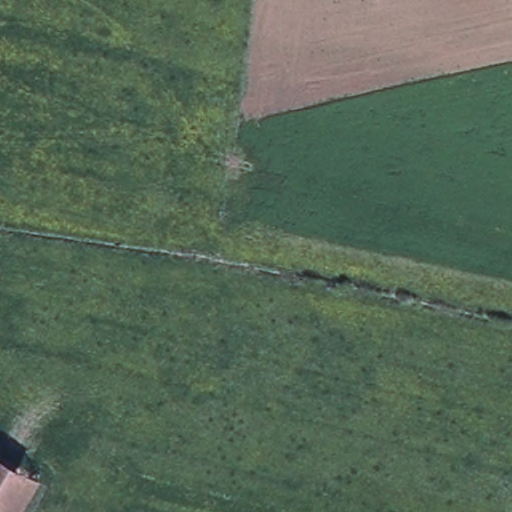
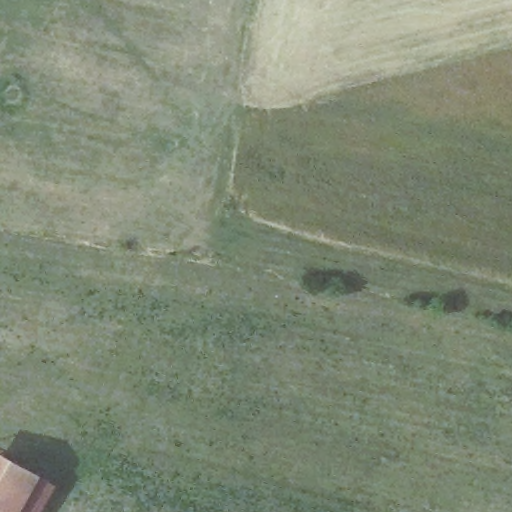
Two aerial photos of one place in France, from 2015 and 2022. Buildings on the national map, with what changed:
unchanged [(50,476),(29,512),(0,512),(0,450),(50,476)]

